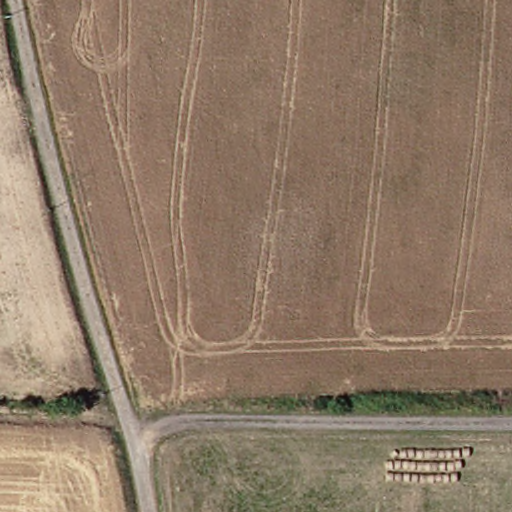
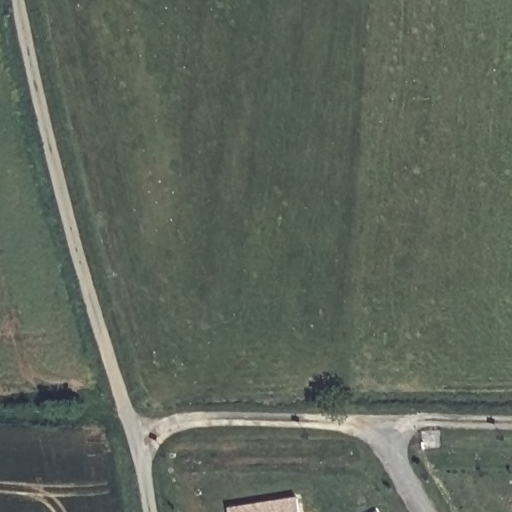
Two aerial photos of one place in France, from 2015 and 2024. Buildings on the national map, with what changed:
new [(298,499),(300,512),(232,512),(232,509),(298,499)]

